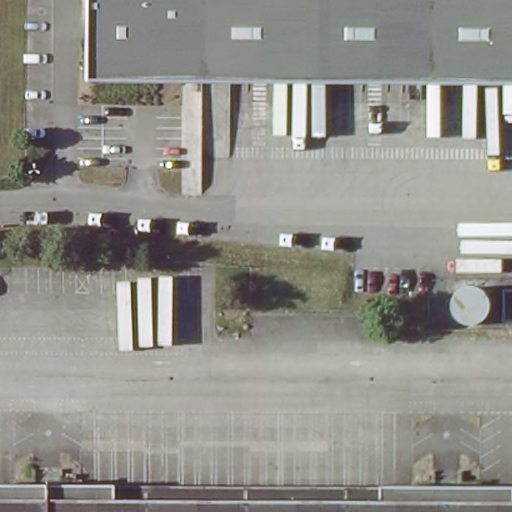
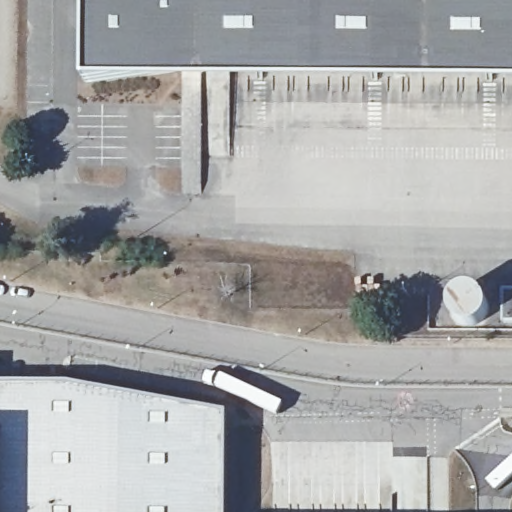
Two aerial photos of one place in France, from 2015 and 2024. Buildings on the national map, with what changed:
unchanged [(90,0),(512,0),(512,85),(90,79),(90,0)]
unchanged [(512,324),(504,325),(504,287),(512,288),(512,324)]
new [(65,383),(225,413),(224,512),(0,512),(0,382),(65,383)]
demolished [(512,502),(512,512),(0,512),(0,500),(512,502)]

